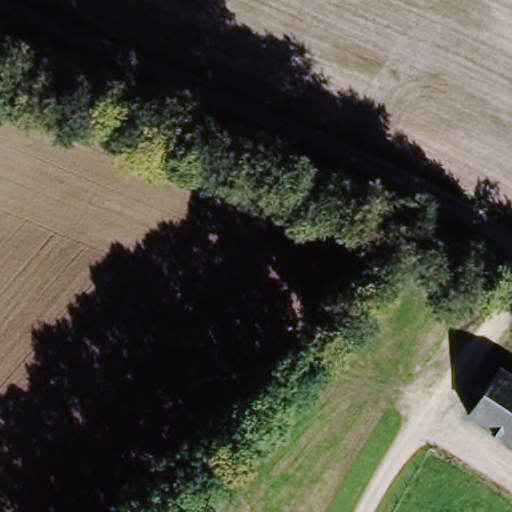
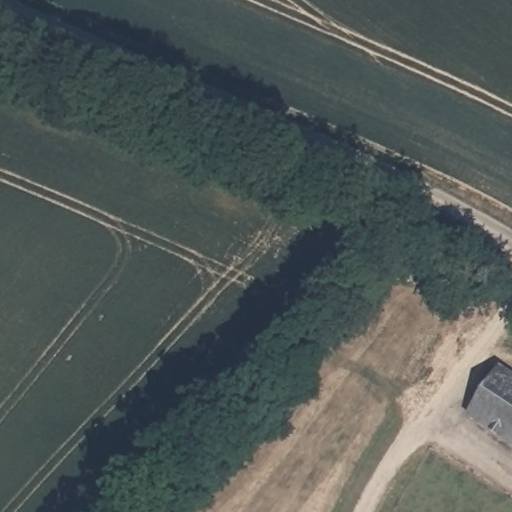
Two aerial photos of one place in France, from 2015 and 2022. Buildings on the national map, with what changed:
unchanged [(512,453),(463,421),(495,371),(512,382),(512,453)]

